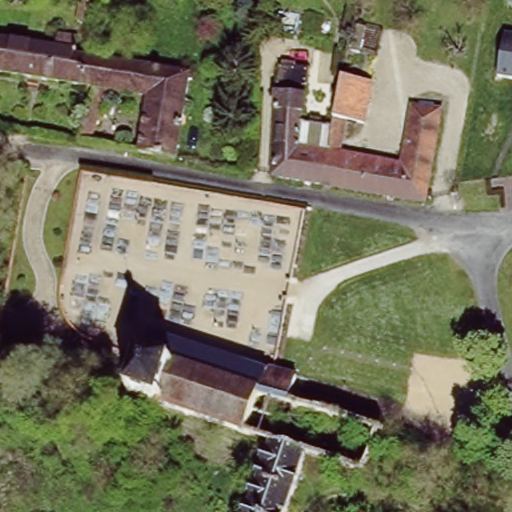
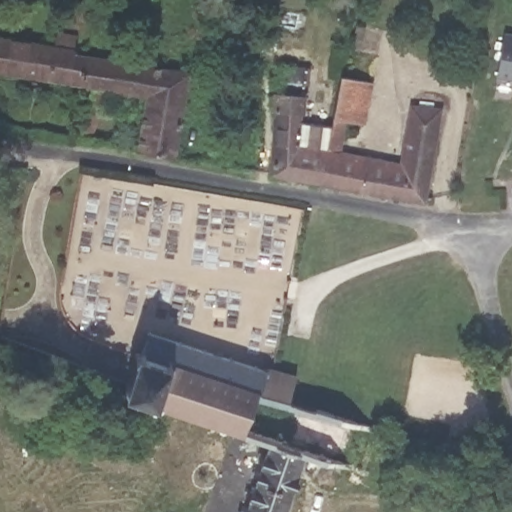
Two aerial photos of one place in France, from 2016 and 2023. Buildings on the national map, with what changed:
unchanged [(504,35),(512,36),(512,82),(497,80),(504,35)]
unchanged [(149,100),(129,96),(100,91),(92,91),(81,88),(0,74),(0,40),(59,50),(61,37),(81,41),(79,53),(87,55),(105,59),(130,63),(135,64),(192,75),(178,160),(140,154),(149,100)]
unchanged [(339,86),(370,90),(362,130),(332,124),(339,86)]
unchanged [(277,87),(302,89),(301,126),(330,130),(325,158),(320,185),(269,176),(277,87)]
unchanged [(325,158),(397,169),(410,109),(436,115),(421,197),(420,201),(320,185),(325,158)]
unchanged [(367,472),(374,475),(371,480),(310,457),(291,512),(245,512),(268,444),(244,436),(127,396),(129,390),(125,389),(126,386),(127,384),(131,385),(140,358),(135,356),(137,350),(142,352),(150,333),(264,373),(264,370),(273,373),(299,381),(292,404),(374,431),(374,428),(387,433),(385,441),(380,439),(367,472)]

